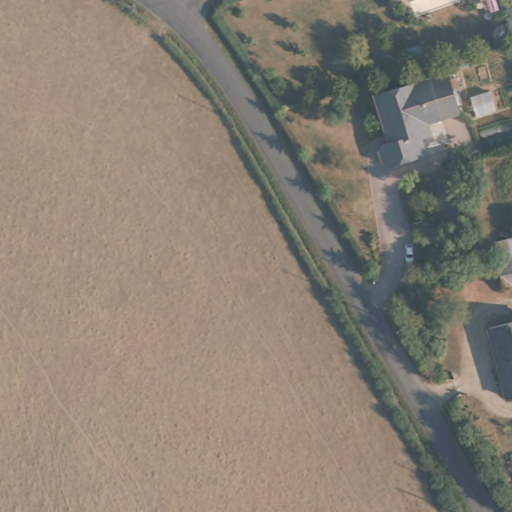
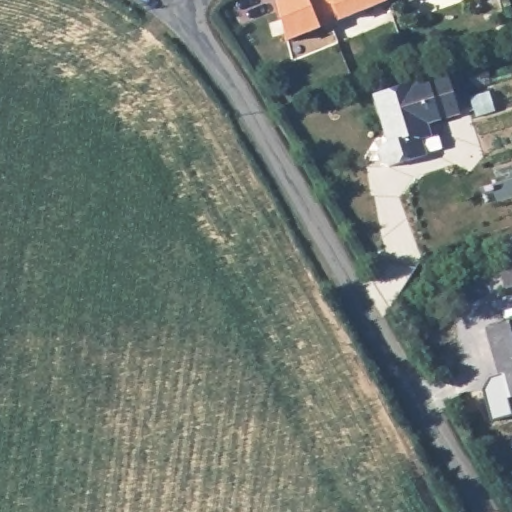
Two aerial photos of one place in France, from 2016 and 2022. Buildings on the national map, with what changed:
new [(275,0),(387,0),(388,1),(286,41),(275,0)]
unchanged [(408,5),(406,0),(420,0),(408,5)]
unchanged [(447,83),(458,123),(419,133),(427,162),(389,173),(379,168),(375,153),(382,146),(371,104),(447,83)]
unchanged [(512,246),(512,275),(499,278),(492,251),(512,246)]
unchanged [(512,318),(512,393),(510,393),(493,323),(512,318)]

